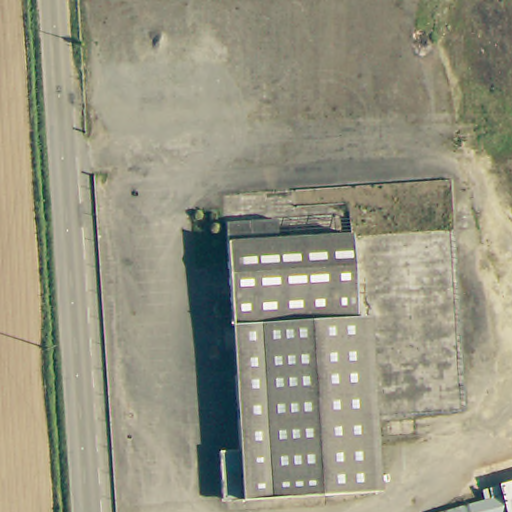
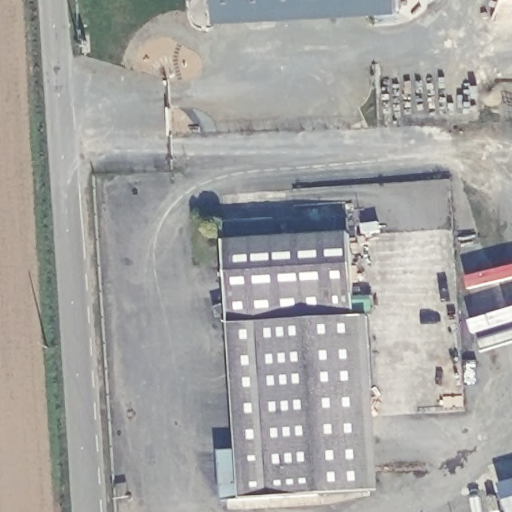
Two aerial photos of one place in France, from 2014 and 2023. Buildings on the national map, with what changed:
new [(215,21),(214,0),(397,0),(397,11),(215,21)]
unchanged [(237,447),(226,223),(352,217),(367,488),(227,495),(226,488),(220,488),(220,448),(237,447)]
unchanged [(501,495),(499,486),(512,483),(512,512),(442,512),(501,495)]

